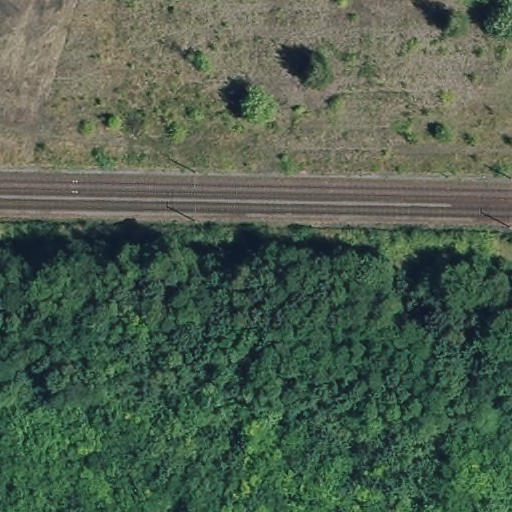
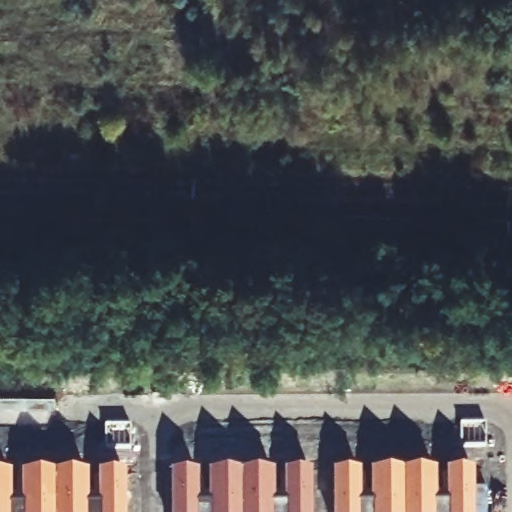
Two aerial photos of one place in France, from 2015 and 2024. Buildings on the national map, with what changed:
new [(333,471),(361,470),(361,497),(370,497),(370,470),(437,470),(437,496),(446,495),(446,470),(474,469),(475,512),(334,512),(333,471)]
new [(125,470),(126,512),(0,512),(0,471),(12,471),(12,505),(21,505),(21,471),(89,470),(90,504),(98,504),(98,470),(125,470)]
new [(171,472),(199,472),(199,497),(208,497),(208,472),(275,471),(275,499),(285,498),(284,471),(312,471),(312,512),(172,512),(171,472)]

